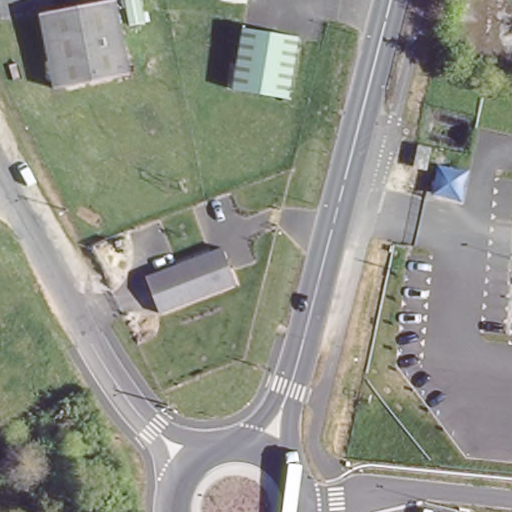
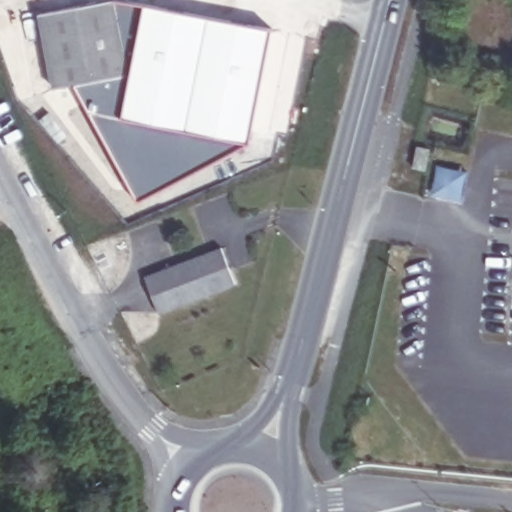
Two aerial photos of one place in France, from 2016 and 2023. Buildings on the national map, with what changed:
unchanged [(128,71),(55,85),(40,10),(92,0),(113,0),(128,71)]
new [(128,71),(113,0),(129,0),(145,3),(271,30),(250,143),(138,202),(73,81),(128,71)]
demolished [(268,8),(231,0),(269,0),(268,8)]
demolished [(294,100),(240,91),(250,32),(303,39),(294,100)]
unchanged [(219,260),(222,259),(226,268),(223,270),(229,284),(158,319),(140,285),(213,250),(219,260)]

